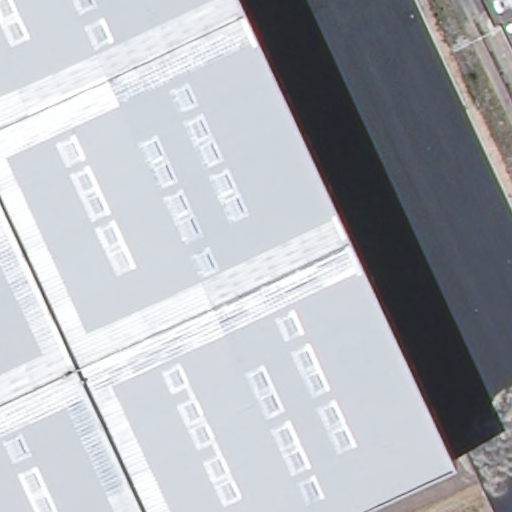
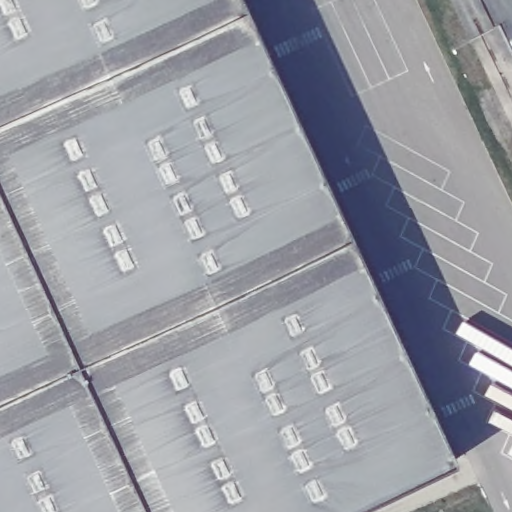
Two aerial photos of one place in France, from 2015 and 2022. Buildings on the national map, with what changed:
unchanged [(457,456),(336,512),(0,512),(0,0),(245,0),(457,456)]

